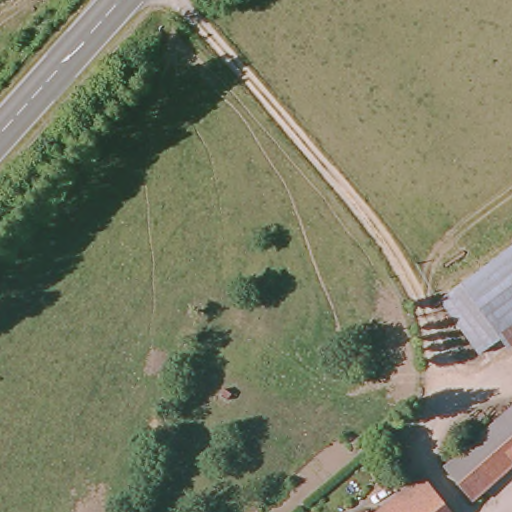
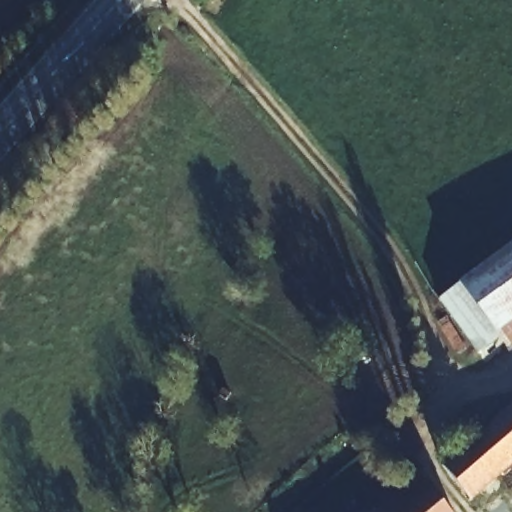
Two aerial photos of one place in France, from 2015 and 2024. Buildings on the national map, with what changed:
unchanged [(448,292),(512,244),(512,350),(489,367),(437,300),(448,292)]
unchanged [(469,502),(440,469),(512,409),(512,466),(469,502)]
unchanged [(443,512),(379,512),(417,480),(443,512)]

